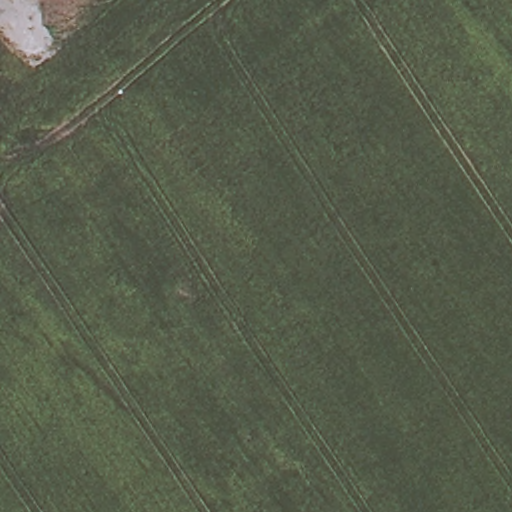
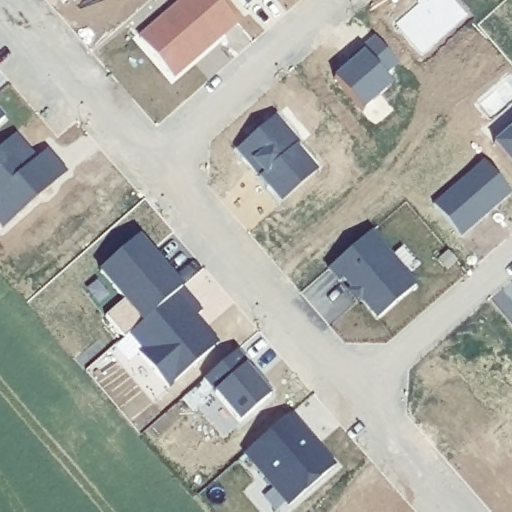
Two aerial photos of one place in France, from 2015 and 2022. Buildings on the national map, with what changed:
new [(179,0),(220,0),(237,20),(176,74),(140,33),(179,0)]
new [(249,2),(246,0),(251,0),(249,2)]
new [(467,14),(424,53),(398,25),(422,4),(419,0),(454,0),(467,14)]
new [(370,47),(367,44),(375,35),(398,61),(385,71),(393,80),(364,102),(337,73),(370,47)]
new [(5,114),(0,119),(0,109),(5,114)]
new [(277,114),(319,167),(282,198),(239,147),(277,114)]
new [(512,157),(497,139),(512,126),(512,157)]
new [(17,130),(38,157),(50,147),(68,168),(4,225),(0,221),(0,146),(17,130)]
new [(485,159),(512,190),(462,233),(435,202),(485,159)]
new [(416,283),(377,316),(329,266),(374,228),(416,283)]
new [(183,283),(174,292),(215,344),(171,384),(128,334),(144,318),(102,268),(142,233),(183,283)]
new [(272,390),(242,417),(207,376),(239,349),(272,390)]
new [(337,464),(288,503),(245,452),(292,410),(337,464)]

